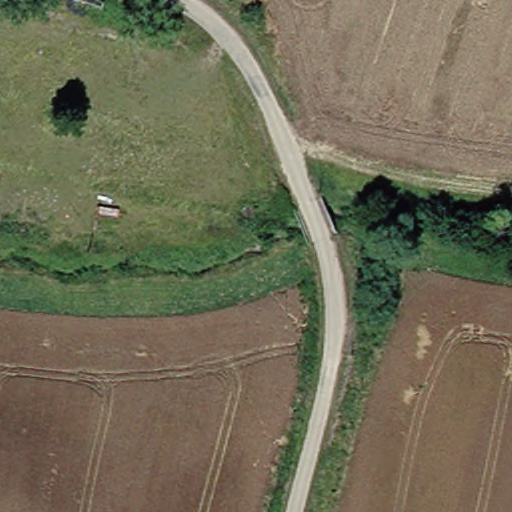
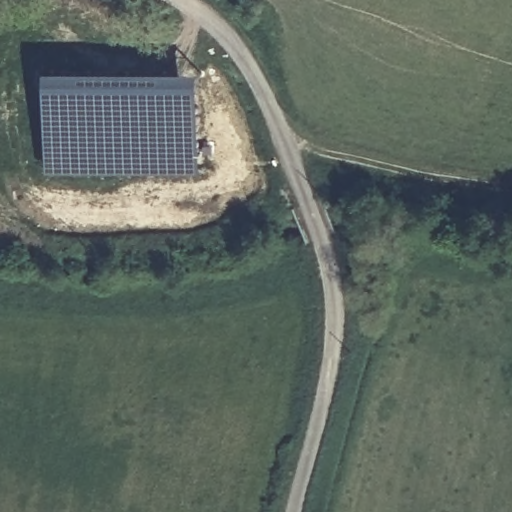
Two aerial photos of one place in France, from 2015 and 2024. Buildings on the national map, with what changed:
new [(49,171),(50,70),(203,71),(202,172),(49,171)]

